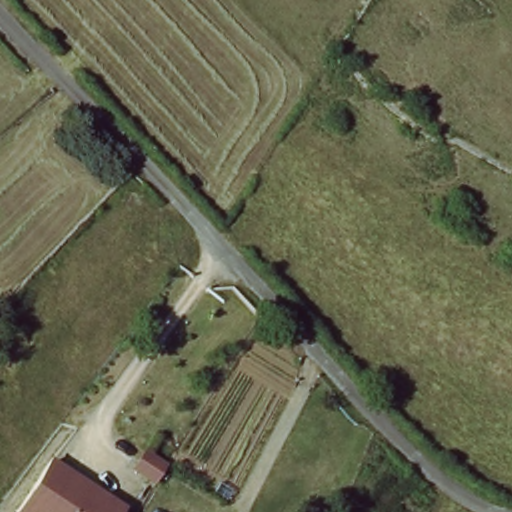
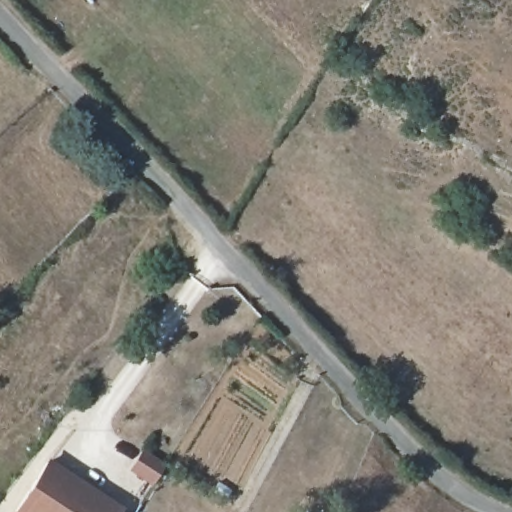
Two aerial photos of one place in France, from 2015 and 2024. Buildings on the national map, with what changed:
unchanged [(141,455),(163,467),(160,473),(153,483),(131,472),(141,455)]
unchanged [(17,505),(46,462),(119,506),(115,512),(13,512),(17,505)]

